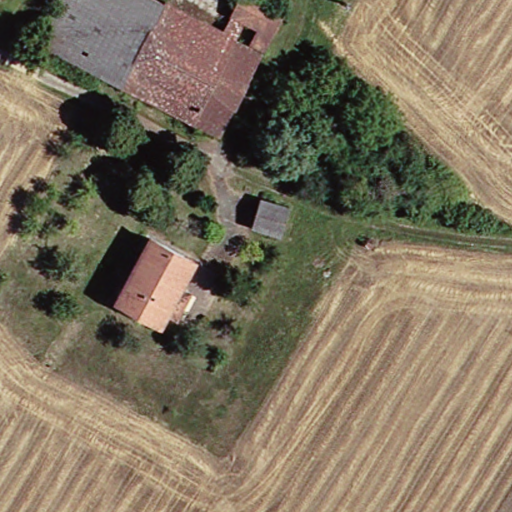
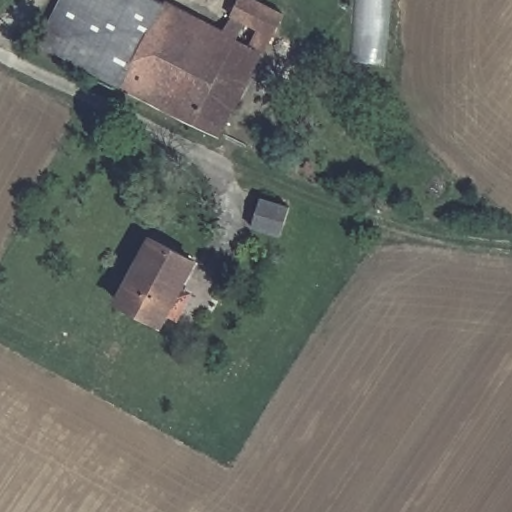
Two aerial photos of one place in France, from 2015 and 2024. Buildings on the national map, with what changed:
unchanged [(68,0),(137,0),(99,75),(43,47),(68,0)]
unchanged [(137,0),(169,0),(230,31),(247,0),(253,0),(265,7),(245,41),(200,127),(99,75),(137,0)]
new [(385,64),(351,62),(355,0),(389,0),(385,64)]
unchanged [(245,41),(272,56),(232,141),(200,127),(245,41)]
unchanged [(252,223),(263,196),(293,209),(280,236),(252,223)]
unchanged [(118,298),(155,236),(198,260),(163,325),(118,298)]

